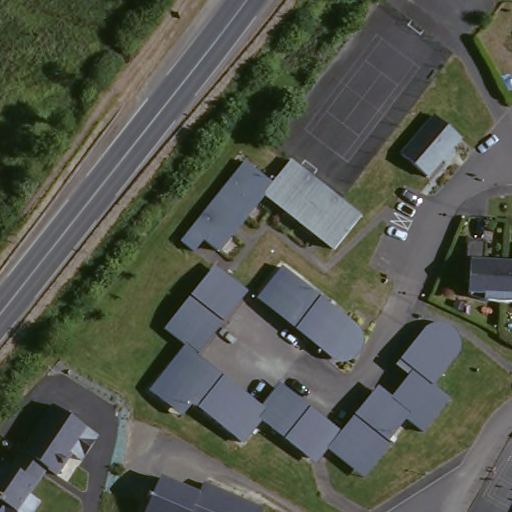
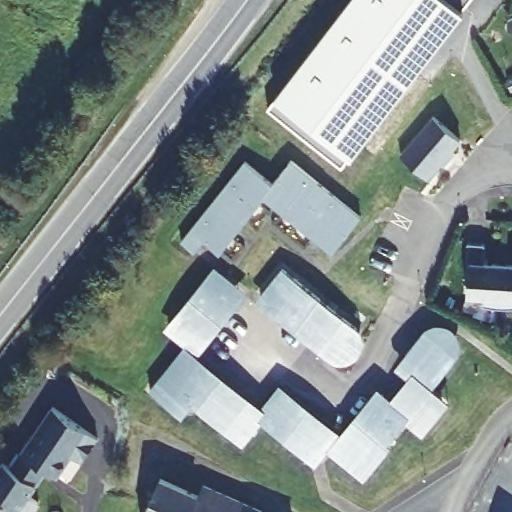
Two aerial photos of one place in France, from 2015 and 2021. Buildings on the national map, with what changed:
new [(276,96),(350,0),(471,0),(463,11),(352,156),(342,165),(268,110),(276,96)]
unchanged [(459,144),(424,183),(399,160),(435,120),(459,144)]
unchanged [(266,197),(222,250),(209,239),(196,251),(182,240),(245,161),(271,185),(291,161),(361,215),(333,249),(266,197)]
unchanged [(505,307),(497,307),(488,306),(481,305),(472,302),(464,300),(465,287),(462,287),(464,246),(482,247),(481,266),(512,268),(512,306),(505,307)]
unchanged [(282,268),(355,327),(344,341),(333,355),(333,354),(319,343),(291,321),(277,310),(263,299),(260,296),(282,268)]
unchanged [(244,300),(200,352),(172,328),(216,276),(244,300)]
unchanged [(356,327),(357,329),(357,330),(357,331),(358,332),(358,334),(359,335),(360,337),(360,338),(360,340),(360,341),(359,343),(359,345),(358,345),(358,347),(357,348),(357,350),(356,351),(356,352),(355,353),(353,355),(352,355),(352,356),(350,357),(349,358),(347,358),(346,360),(345,360),(343,360),(342,360),(341,361),(339,361),(337,361),(336,360),(335,360),(333,360),(332,360),(331,359),(330,359),(257,300),(260,296),(263,299),(277,310),(291,321),(319,343),(333,354),(333,355),(344,341),(355,327),(356,327)]
unchanged [(450,403),(424,436),(407,422),(388,446),(391,448),(366,481),(333,455),(353,430),(355,432),(381,400),(393,410),(419,380),(402,365),(430,335),(431,333),(432,333),(434,332),(435,332),(437,331),(438,331),(440,331),(441,331),(442,331),(444,331),(446,331),(447,331),(448,332),(450,332),(451,333),(452,334),(453,335),(455,335),(456,336),(457,337),(458,338),(458,340),(460,341),(461,342),(461,343),(462,345),(462,346),(462,347),(462,349),(462,350),(462,352),(462,353),(462,355),(462,356),(462,358),(462,360),(461,360),(461,361),(436,390),(450,403)]
unchanged [(209,387),(216,380),(263,420),(282,397),(332,438),(310,465),(261,425),(242,447),(194,407),(183,420),(152,393),(178,361),(209,387)]
unchanged [(82,467),(69,460),(56,480),(42,475),(17,512),(0,512),(0,461),(9,466),(49,407),(97,441),(82,467)]
unchanged [(202,484),(262,507),(260,512),(145,512),(158,480),(197,496),(202,484)]

